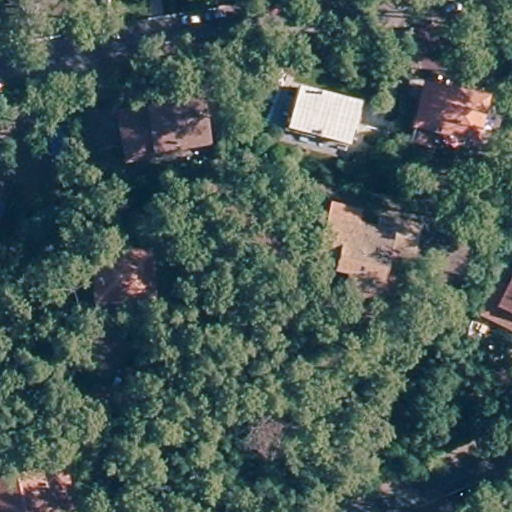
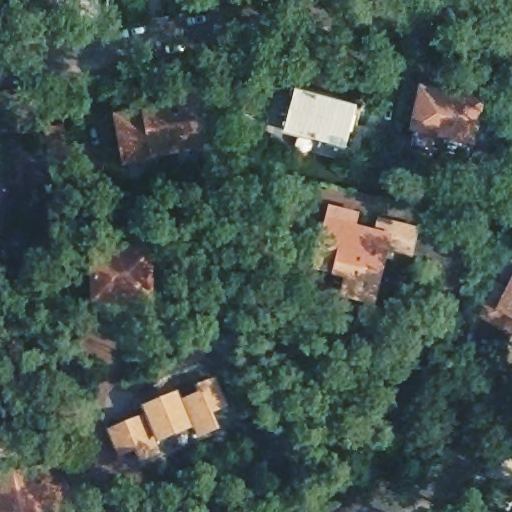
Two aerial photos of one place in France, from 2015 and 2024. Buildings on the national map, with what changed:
unchanged [(491,104),(481,157),(403,141),(415,87),(491,104)]
unchanged [(359,108),(348,151),(287,135),(299,91),(359,108)]
unchanged [(164,108),(163,103),(179,100),(178,95),(197,92),(202,120),(191,122),(195,145),(154,153),(154,157),(126,162),(118,115),(145,110),(145,111),(164,108)]
unchanged [(74,161),(57,165),(50,134),(69,130),(74,161)]
unchanged [(391,231),(396,219),(420,230),(412,270),(386,262),(371,310),(306,287),(318,220),(391,231)]
unchanged [(150,256),(151,314),(96,315),(95,256),(150,256)]
unchanged [(509,339),(474,321),(482,305),(494,311),(512,276),(512,332),(509,339)]
new [(198,440),(194,430),(158,443),(163,456),(140,463),(116,456),(108,431),(145,413),(141,406),(178,391),(182,399),(199,391),(197,385),(217,377),(229,408),(214,413),(220,429),(198,440)]
unchanged [(51,450),(0,460),(0,413),(54,413),(51,450)]
unchanged [(69,512),(0,512),(0,482),(59,469),(69,512)]

